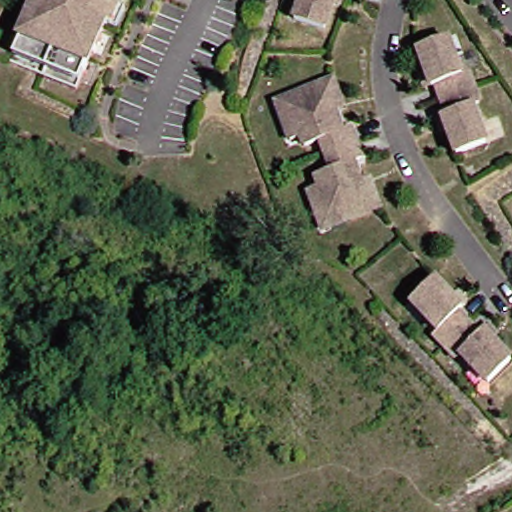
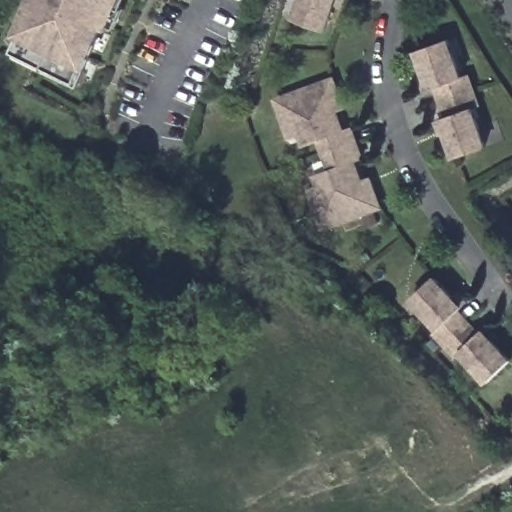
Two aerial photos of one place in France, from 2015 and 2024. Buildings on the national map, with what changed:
unchanged [(104,28),(77,93),(9,63),(36,0),(119,0),(106,29),(104,28)]
unchanged [(334,4),(326,29),(296,20),(302,0),(342,0),(341,6),(334,4)]
unchanged [(416,49),(445,37),(460,74),(466,72),(472,87),(442,99),(436,85),(431,87),(425,89),(420,76),(425,73),(416,49)]
unchanged [(342,108),(334,111),(342,130),(350,127),(356,142),(326,154),(320,140),(305,146),(301,136),(290,140),(280,114),(275,102),(285,98),(331,80),(337,95),(342,108)]
unchanged [(447,113),(442,99),(472,87),(477,102),(472,105),(487,142),(457,154),(447,129),(442,131),(436,118),(442,115),(447,113)]
unchanged [(319,215),(309,189),(320,185),(316,175),(332,168),(326,154),(356,142),(362,158),(353,161),(361,180),(369,177),(374,190),(380,205),(335,223),(324,227),(319,215)]
unchanged [(438,330),(410,301),(432,279),(452,298),(456,293),(466,303),(462,308),(457,312),(468,323),(446,346),(434,334),(438,330)]
unchanged [(479,334),(483,330),(487,325),(498,336),(493,340),(512,359),(490,382),(461,353),(457,357),(446,346),(468,323),(479,334)]

